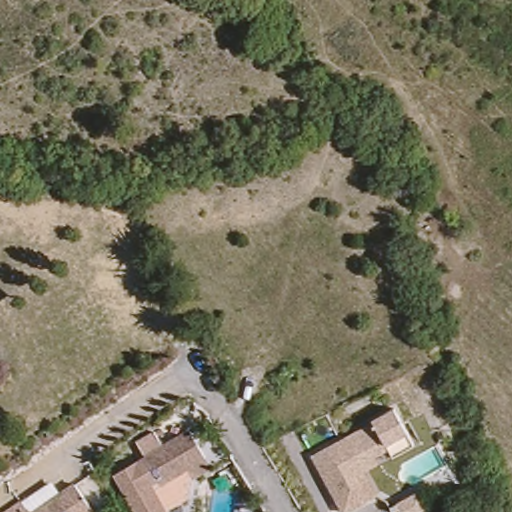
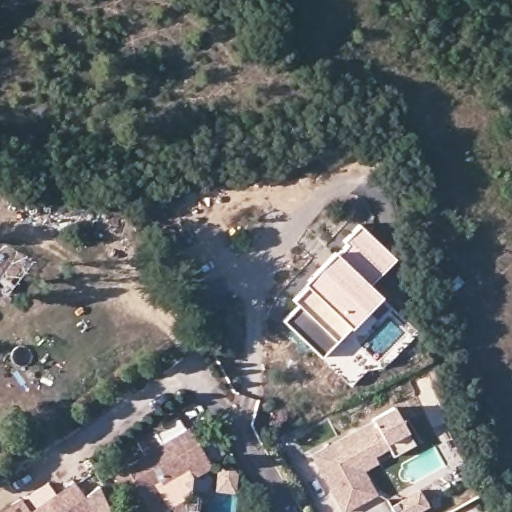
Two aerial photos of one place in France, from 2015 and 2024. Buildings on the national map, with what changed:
new [(283,320),(298,306),(293,300),(307,286),(304,282),(334,251),(339,257),(347,246),(343,242),(359,225),(393,258),(368,285),(378,295),(349,326),(335,340),(321,355),(283,320)]
unchanged [(416,448),(362,477),(372,499),(340,512),(338,512),(311,454),(393,403),(416,448)]
unchanged [(196,481),(193,473),(166,488),(150,460),(195,434),(211,463),(216,470),(196,481)]
unchanged [(154,494),(162,512),(128,512),(111,480),(150,460),(166,488),(154,494)]
new [(2,512),(52,479),(60,492),(75,481),(80,488),(45,512),(2,512)]
unchanged [(97,512),(45,512),(80,488),(97,512)]
new [(428,504),(411,512),(403,512),(399,505),(393,508),(391,502),(420,488),(428,504)]

